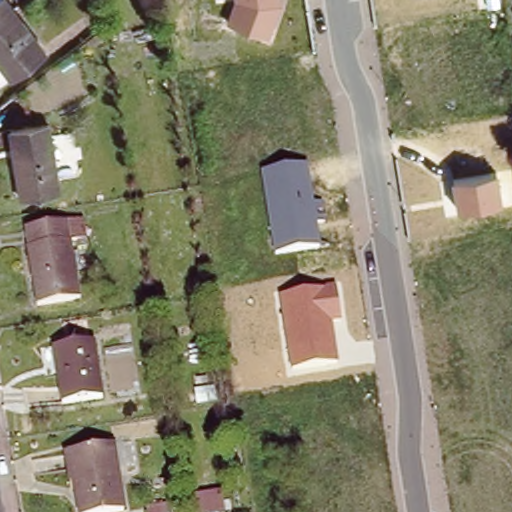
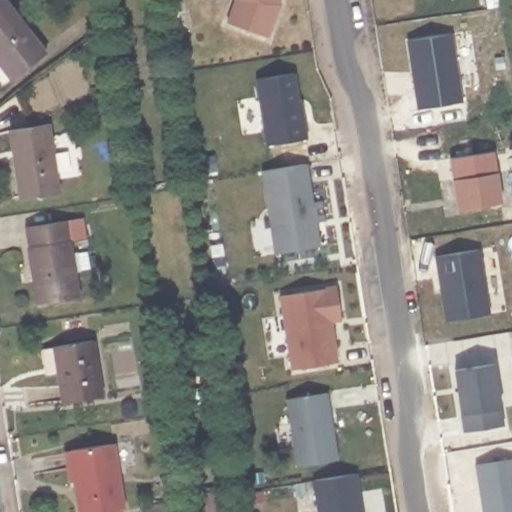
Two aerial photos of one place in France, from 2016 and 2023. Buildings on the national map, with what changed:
unchanged [(20,70),(6,81),(0,72),(0,0),(20,0),(54,45),(20,70)]
unchanged [(235,0),(283,0),(283,5),(268,39),(225,20),(235,0)]
new [(293,76),(299,111),(301,111),(306,141),(266,148),(256,81),(293,76)]
unchanged [(20,192),(10,126),(51,121),(60,186),(20,192)]
unchanged [(262,169),(307,162),(313,200),(323,198),(325,218),(317,221),(321,247),(275,253),(262,169)]
unchanged [(452,182),(496,175),(501,206),(456,213),(452,182)]
unchanged [(68,239),(75,295),(35,300),(25,224),(83,216),(85,236),(68,239)]
new [(478,252),(489,316),(446,323),(435,258),(478,252)]
new [(223,260),(225,274),(216,276),(214,262),(223,260)]
unchanged [(280,295),(336,286),(341,320),(331,322),(338,364),(291,370),(280,295)]
unchanged [(62,406),(55,349),(95,343),(102,400),(62,406)]
new [(463,434),(461,416),(453,371),(495,363),(502,408),(505,408),(507,423),(463,434)]
new [(327,394),(337,462),(297,468),(286,401),(327,394)]
unchanged [(69,451),(111,445),(120,512),(117,512),(77,512),(69,451)]
new [(475,464),(512,458),(512,512),(482,512),(475,464)]
new [(355,474),(361,512),(319,512),(314,481),(355,474)]

